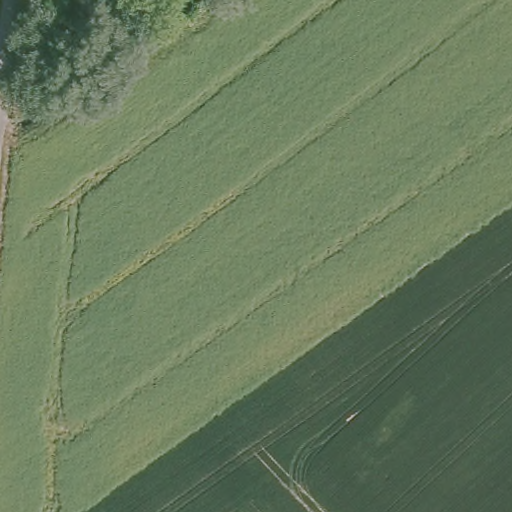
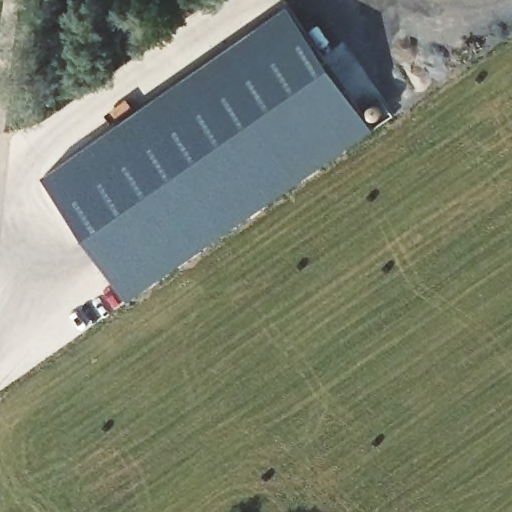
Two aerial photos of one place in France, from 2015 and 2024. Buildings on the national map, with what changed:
new [(290,6),(376,129),(128,300),(43,177),(290,6)]

